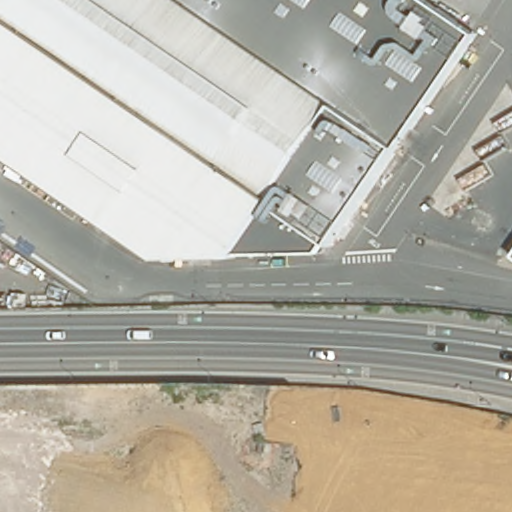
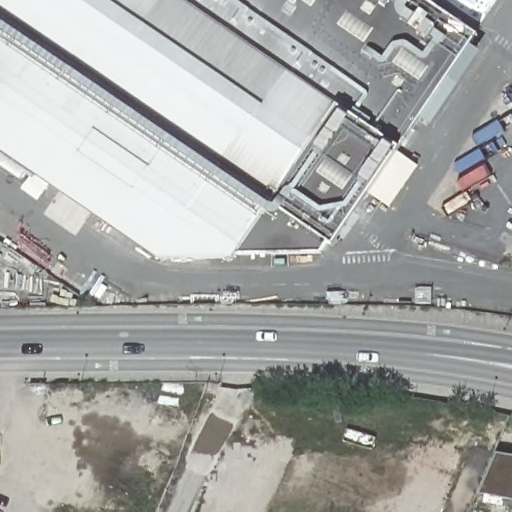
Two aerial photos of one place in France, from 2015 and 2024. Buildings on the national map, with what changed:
unchanged [(396,145),(332,241),(328,238),(320,250),(232,253),(158,255),(0,148),(0,0),(429,0),(475,31),(396,145)]
unchanged [(512,254),(512,256),(511,255),(512,254)]
new [(497,453),(512,456),(512,504),(479,496),(497,453)]

